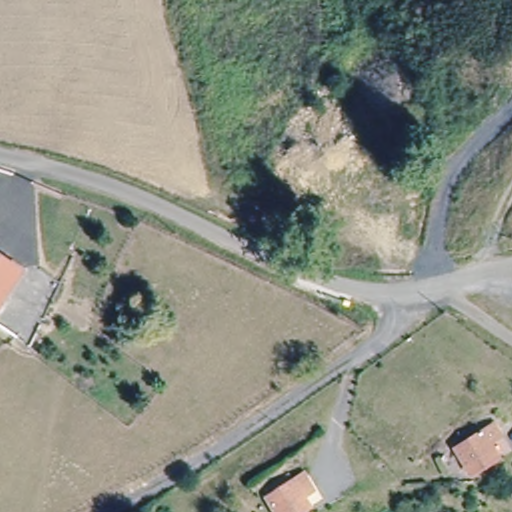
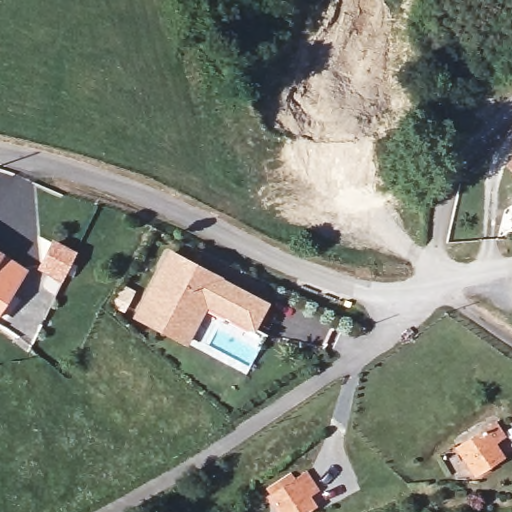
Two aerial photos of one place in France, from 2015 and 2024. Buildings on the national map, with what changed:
new [(512,155),(512,172),(504,164),(512,155)]
unchanged [(0,304),(0,254),(23,270),(0,304)]
new [(166,336),(137,320),(170,258),(266,307),(253,333),(206,308),(197,326),(186,346),(166,336)]
unchanged [(503,450),(480,468),(460,442),(495,415),(506,429),(494,438),(503,450)]
unchanged [(303,512),(284,512),(270,490),(306,465),(317,482),(303,491),(312,506),(303,512)]

